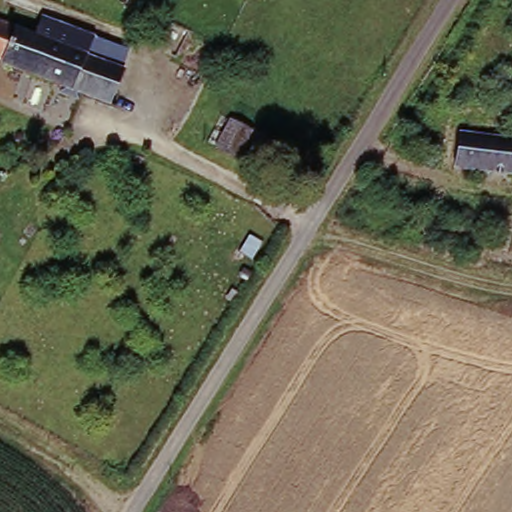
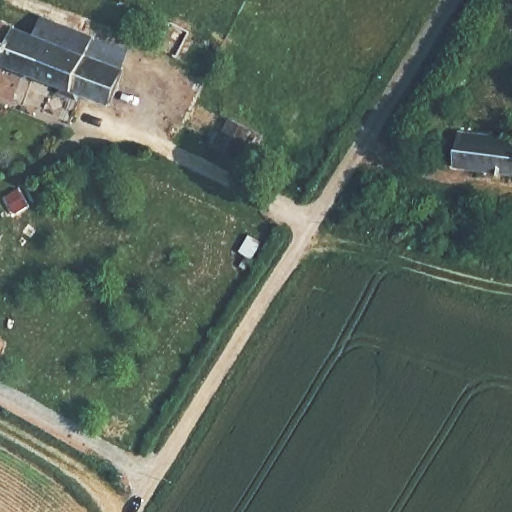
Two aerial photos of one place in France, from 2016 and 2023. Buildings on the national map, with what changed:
unchanged [(129,71),(110,108),(0,57),(0,9),(4,0),(13,0),(39,13),(90,38),(132,57),(129,71)]
unchanged [(252,132),(239,161),(211,148),(225,117),(252,132)]
unchanged [(512,139),(512,176),(452,172),(454,135),(512,139)]

